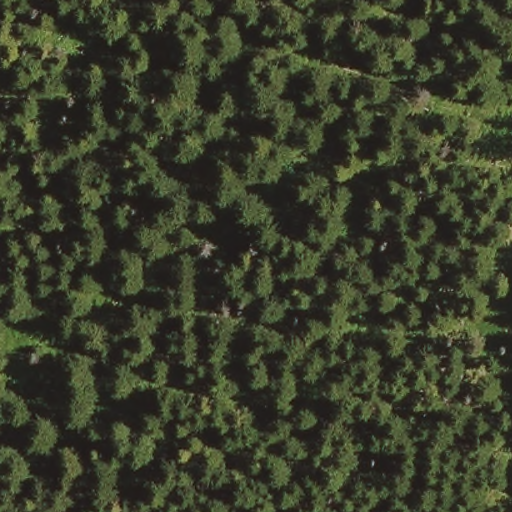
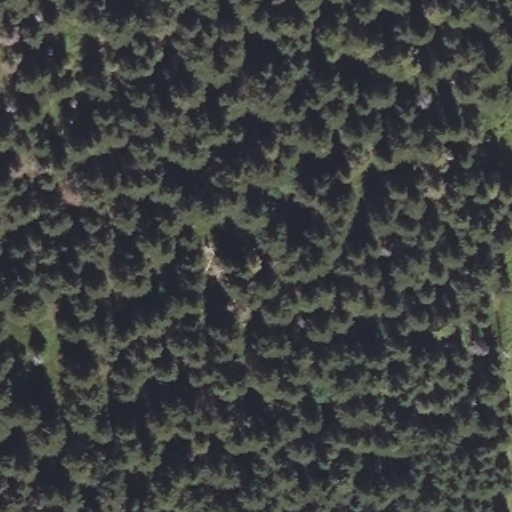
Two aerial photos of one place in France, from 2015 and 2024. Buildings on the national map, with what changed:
[]

